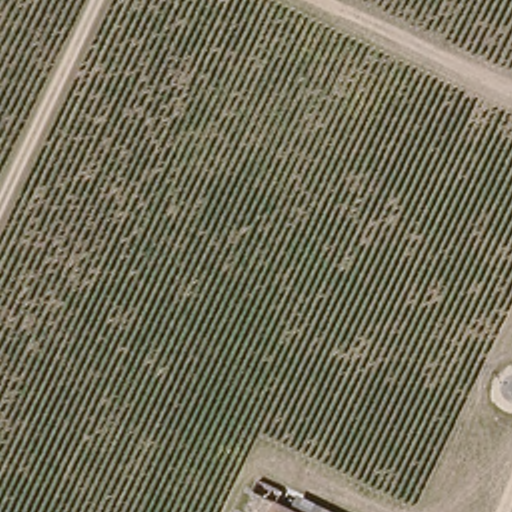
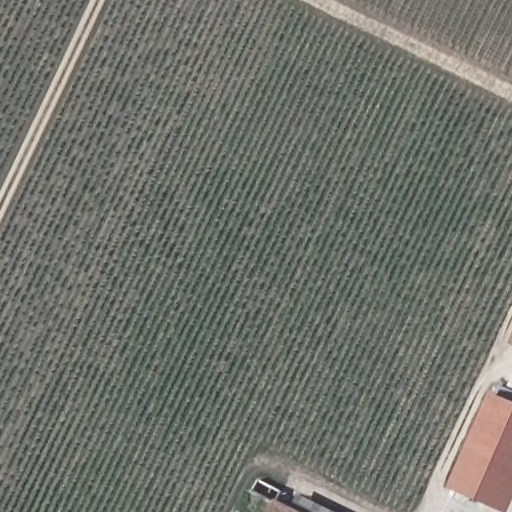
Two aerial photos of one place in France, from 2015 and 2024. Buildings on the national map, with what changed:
new [(496,396),(500,386),(512,392),(512,511),(512,512),(501,512),(449,489),(491,394),(496,396)]
unchanged [(282,502),(259,491),(267,477),(289,488),(339,512),(278,512),(282,502)]

